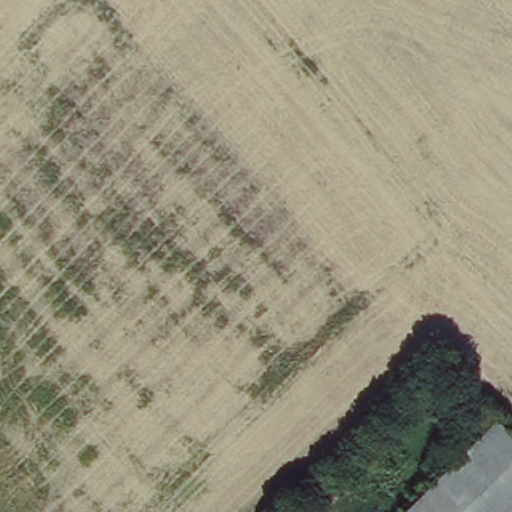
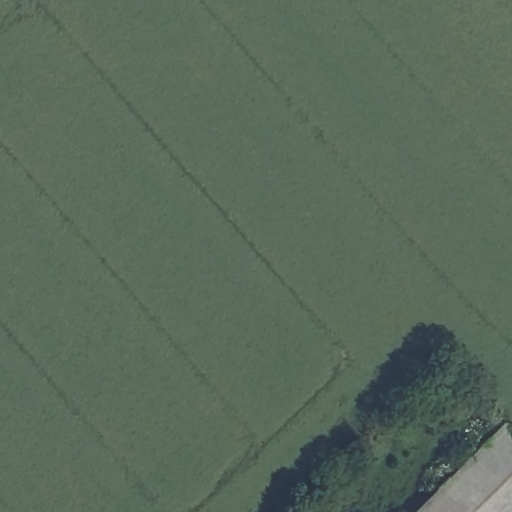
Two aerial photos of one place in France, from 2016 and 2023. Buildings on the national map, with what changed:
unchanged [(414,512),(501,426),(512,437),(512,512),(414,512)]

